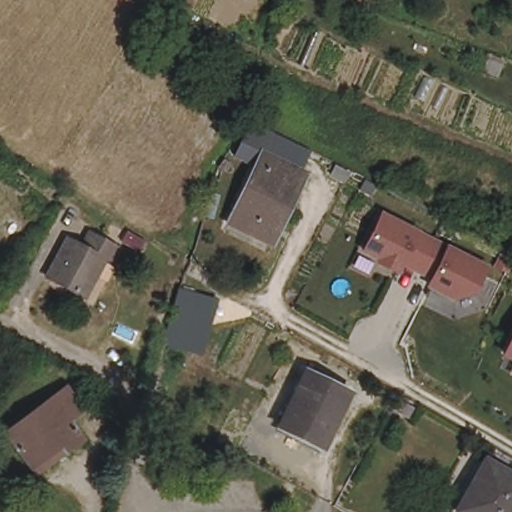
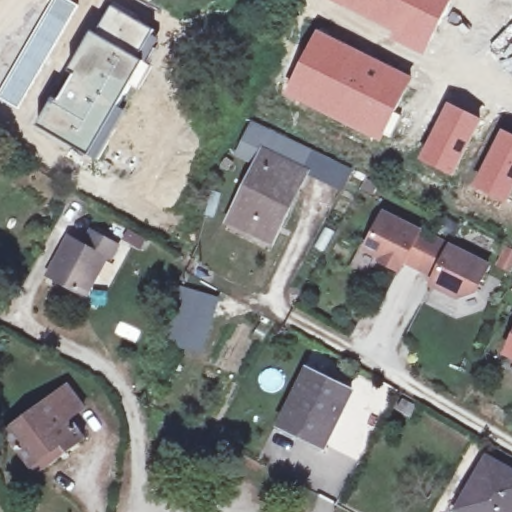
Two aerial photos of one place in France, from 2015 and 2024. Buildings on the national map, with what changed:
new [(425,55),(390,37),(392,32),(331,0),(451,0),(425,55)]
new [(55,97),(57,99),(85,44),(112,5),(155,30),(140,58),(146,62),(120,107),(125,110),(96,161),(37,127),(55,97)]
new [(317,29),(412,76),(381,143),(285,93),(317,29)]
new [(448,101),(481,118),(453,177),(418,159),(448,101)]
unchanged [(311,174),(274,248),(231,226),(266,151),(250,141),(258,124),(294,144),(285,161),(311,174)]
unchanged [(478,293),(456,302),(429,289),(432,278),(406,266),(404,271),(363,250),(382,210),(490,262),(478,293)]
unchanged [(108,260),(88,298),(50,278),(70,239),(85,246),(92,233),(120,247),(112,261),(108,260)]
unchanged [(207,306),(195,335),(180,331),(192,300),(207,306)]
unchanged [(512,339),(512,360),(505,356),(512,339)]
unchanged [(353,395),(328,451),(285,429),(310,373),(353,395)]
unchanged [(56,452),(30,470),(3,434),(58,392),(75,415),(62,425),(79,448),(63,460),(56,452)]
unchanged [(512,512),(461,512),(488,461),(512,474),(512,512)]

